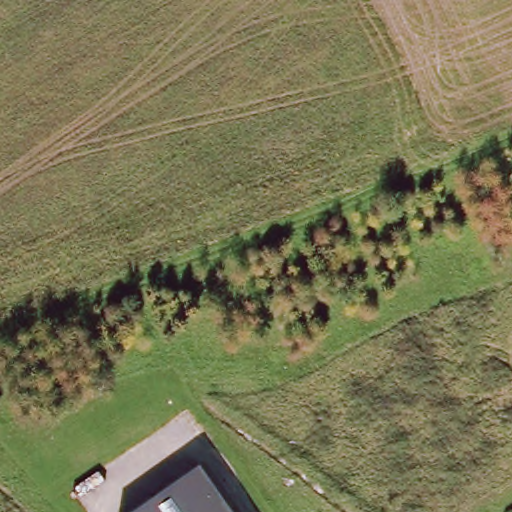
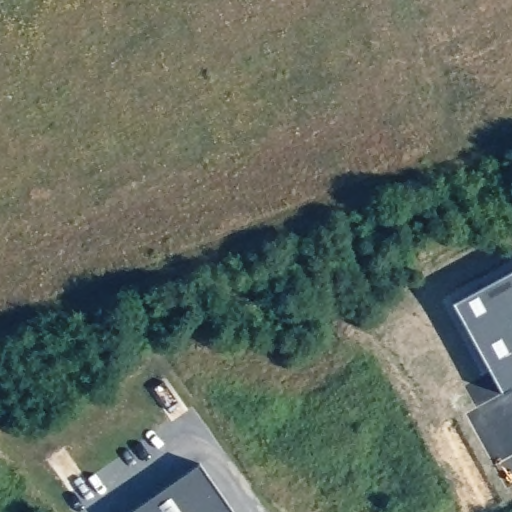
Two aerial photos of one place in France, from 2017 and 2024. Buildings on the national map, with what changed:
new [(504,395),(452,302),(512,269),(512,391),(504,395)]
unchanged [(234,512),(135,512),(202,466),(234,512)]

